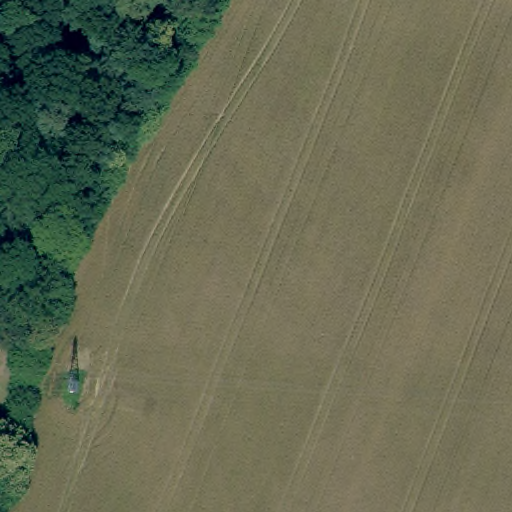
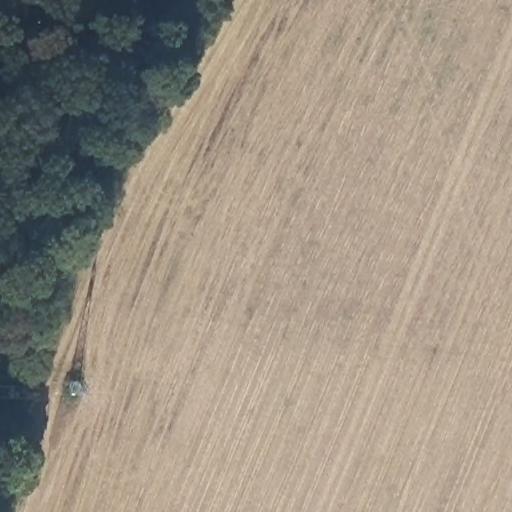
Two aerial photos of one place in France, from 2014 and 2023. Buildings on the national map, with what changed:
[]

